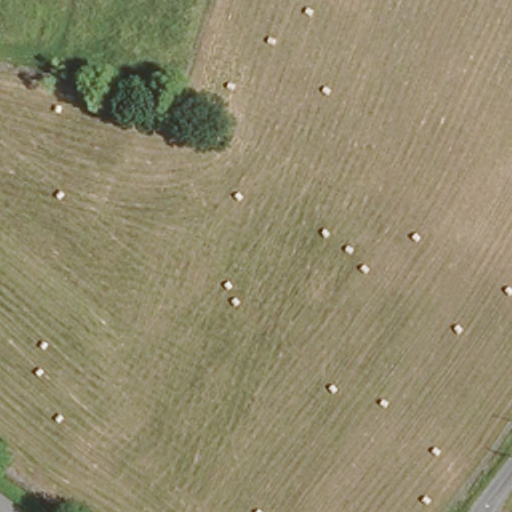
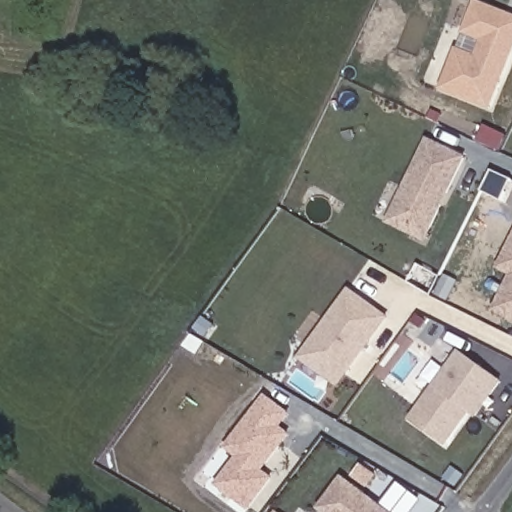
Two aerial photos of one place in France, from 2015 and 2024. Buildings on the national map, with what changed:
new [(455,51),(474,59),(481,41),(461,33),(473,2),(512,18),(512,45),(487,109),(439,90),(455,51)]
new [(385,222),(387,220),(402,189),(408,177),(425,142),(461,160),(443,196),(438,206),(424,235),(421,240),(385,222)]
new [(501,315),(493,311),(511,276),(499,270),(512,242),(512,321),(501,315)]
new [(346,292),(383,320),(342,376),(334,387),(297,360),(305,350),(346,292)]
new [(466,413),(443,445),(409,420),(457,355),(497,383),(486,398),(472,418),(466,413)]
new [(238,455),(225,445),(264,395),(287,412),(277,425),(287,432),(259,468),(269,476),(246,506),(216,482),(238,455)]
new [(317,505),(340,475),(388,512),(325,512),(317,505)]

